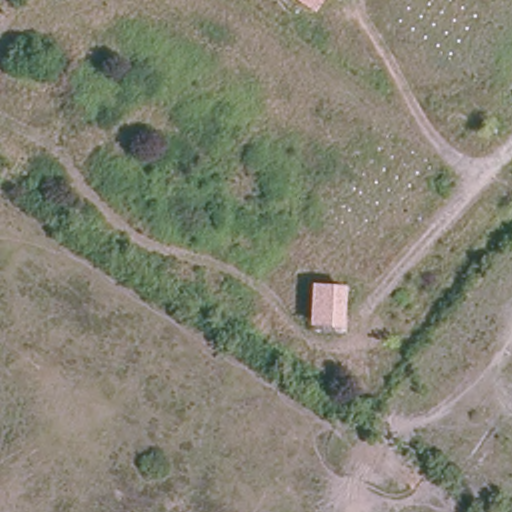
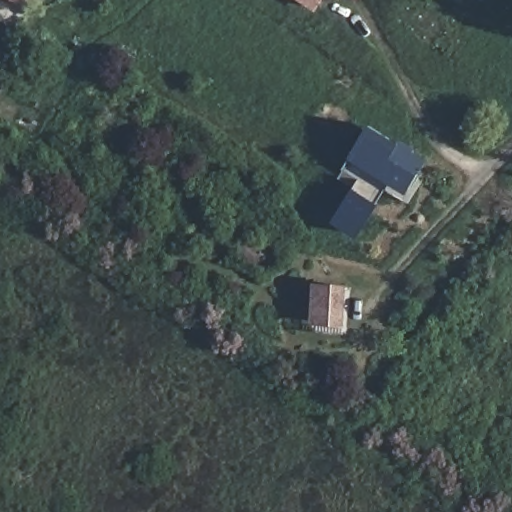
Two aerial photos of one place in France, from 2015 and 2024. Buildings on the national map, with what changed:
new [(10,0),(22,0),(17,6),(10,0)]
unchanged [(299,0),(324,0),(317,11),(299,0)]
new [(343,181),(348,173),(346,171),(373,128),(430,159),(406,196),(396,190),(393,195),(386,191),(357,236),(333,221),(355,188),(343,181)]
unchanged [(346,327),(310,326),(312,283),(347,284),(346,327)]

